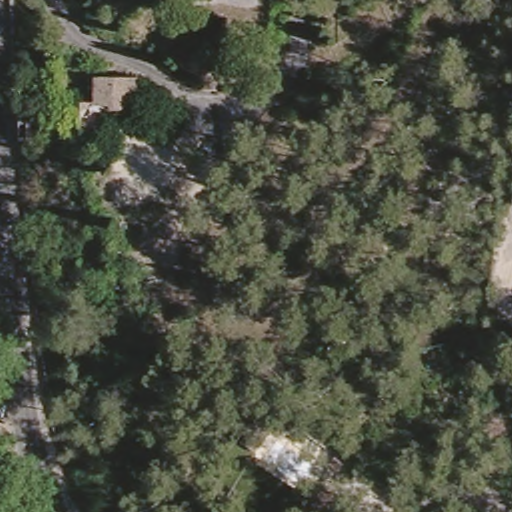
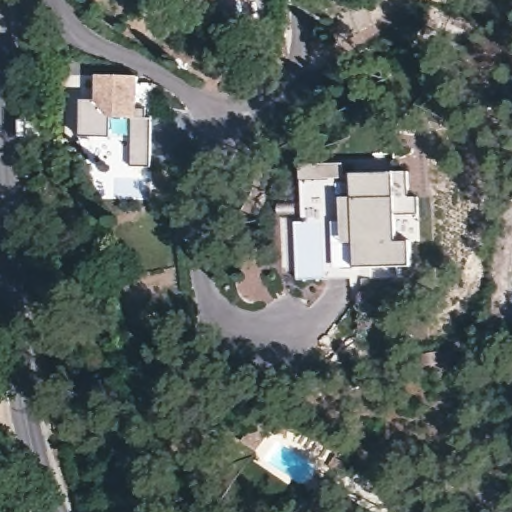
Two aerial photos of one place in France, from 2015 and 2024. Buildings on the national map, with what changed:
new [(98,102),(97,76),(137,77),(138,109),(150,109),(150,166),(133,166),(133,119),(113,118),(111,137),(83,136),(83,102),(98,102)]
demolished [(129,77),(129,105),(104,106),(104,101),(91,101),(91,77),(129,77)]
new [(354,198),(343,199),(345,244),(356,244),(356,266),(399,266),(399,276),(298,280),(296,223),(304,221),(302,182),(302,165),(342,164),(343,180),(353,180),(354,198)]
new [(408,197),(418,196),(418,215),(396,215),(395,175),(395,172),(408,171),(408,197)]
new [(354,198),(353,175),(395,175),(396,240),(409,241),(410,266),(356,266),(356,244),(345,244),(343,199),(354,198)]
unchanged [(316,458),(309,471),(290,462),(297,448),(316,458)]
unchanged [(352,512),(308,512),(321,492),(352,512)]

